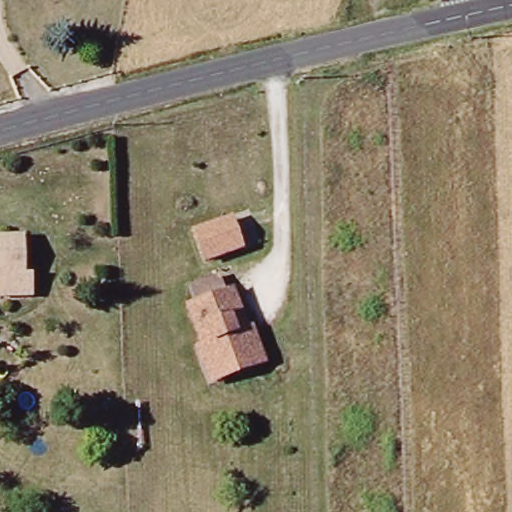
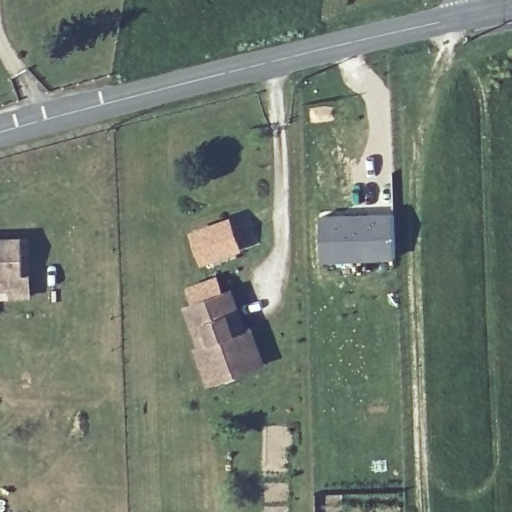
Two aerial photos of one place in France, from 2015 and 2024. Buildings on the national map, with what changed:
new [(394,210),(396,260),(319,264),(316,215),(394,210)]
unchanged [(237,212),(247,240),(212,253),(202,224),(237,212)]
unchanged [(4,241),(17,241),(18,279),(29,278),(29,297),(5,297),(0,297),(0,241),(4,241)]
unchanged [(188,310),(195,308),(190,291),(221,281),(226,297),(234,295),(254,356),(258,370),(214,384),(210,371),(188,310)]

